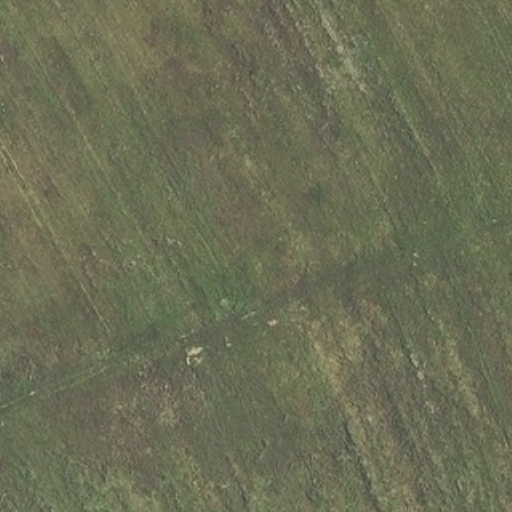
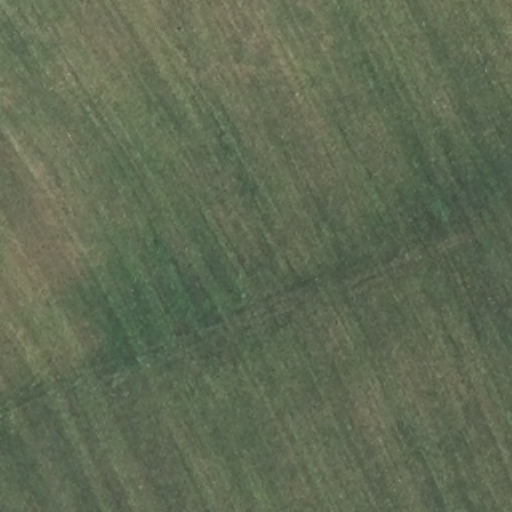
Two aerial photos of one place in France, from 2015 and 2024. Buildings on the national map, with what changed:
[]

